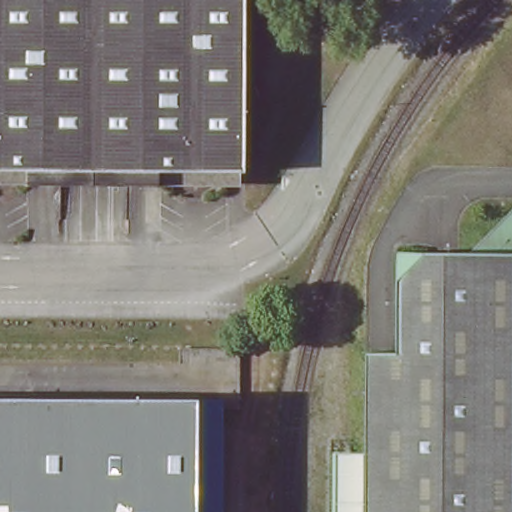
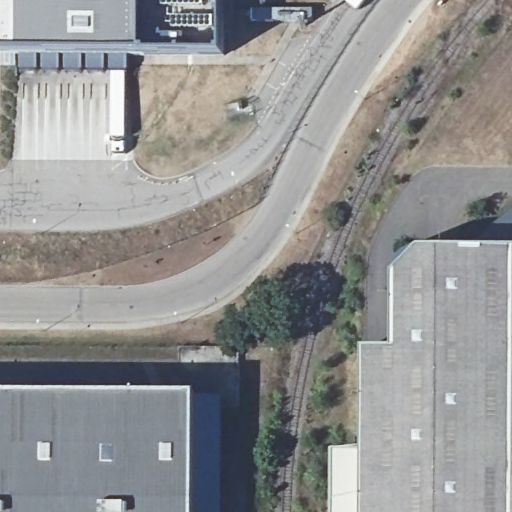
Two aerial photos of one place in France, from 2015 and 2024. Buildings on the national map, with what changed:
new [(129,53),(130,72),(22,72),(22,51),(0,52),(0,0),(227,0),(227,52),(129,53)]
demolished [(0,169),(0,0),(245,0),(243,170),(0,169)]
unchanged [(386,351),(387,252),(461,252),(475,252),(475,237),(493,220),(506,207),(512,207),(512,512),(355,512),(355,351),(386,351)]
unchanged [(199,402),(199,512),(0,512),(0,401),(199,402)]

